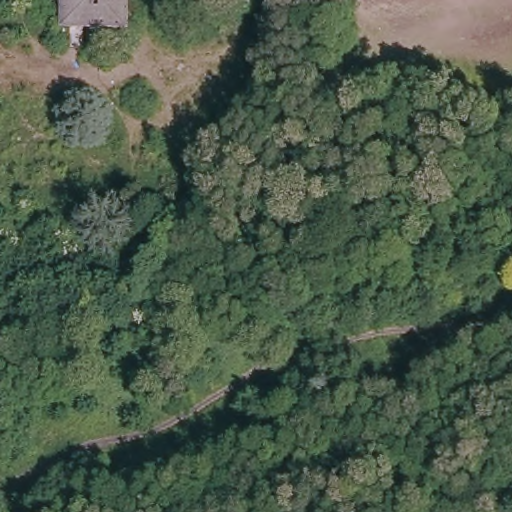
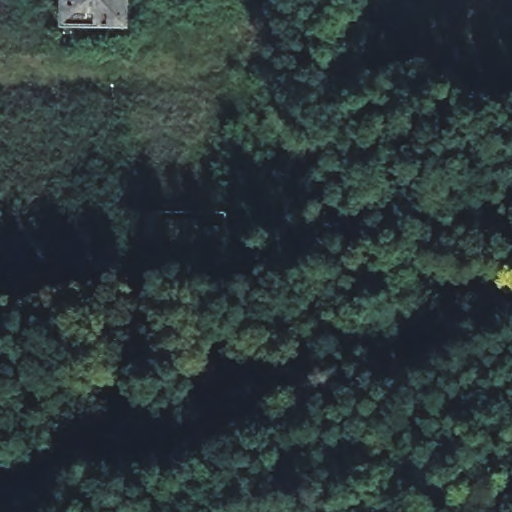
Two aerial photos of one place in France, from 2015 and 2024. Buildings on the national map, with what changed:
unchanged [(64,26),(65,0),(129,0),(128,28),(64,26)]
unchanged [(227,243),(148,240),(150,214),(228,217),(227,243)]

